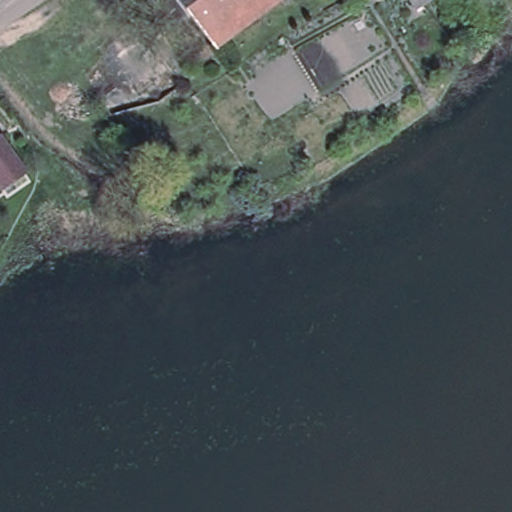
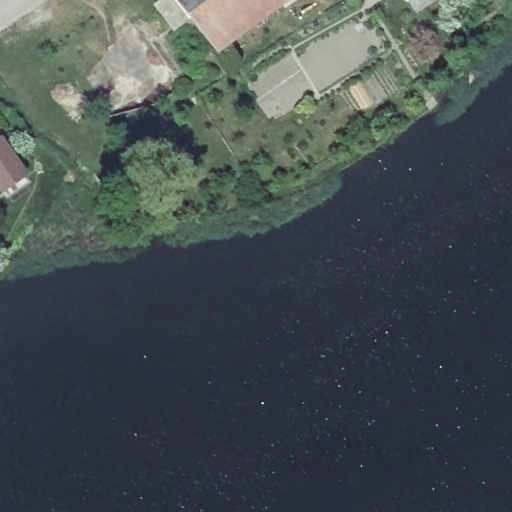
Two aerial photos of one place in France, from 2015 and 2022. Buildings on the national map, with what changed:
unchanged [(286,6),(282,0),(215,48),(190,18),(175,29),(156,5),(163,0),(295,0),(286,6)]
unchanged [(418,10),(411,0),(433,0),(418,10)]
unchanged [(1,140),(25,174),(3,190),(0,186),(0,141),(1,140)]

